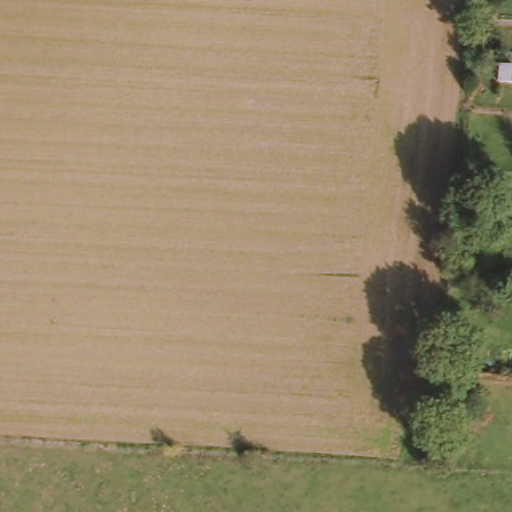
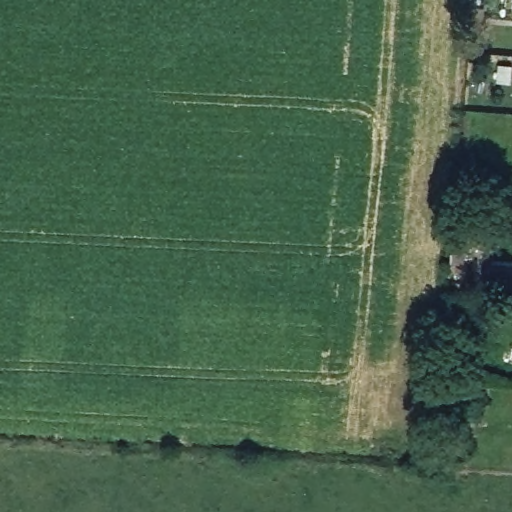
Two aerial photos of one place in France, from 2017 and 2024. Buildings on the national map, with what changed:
unchanged [(479,40),(478,51),(465,50),(465,39),(479,40)]
unchanged [(503,67),(503,82),(489,81),(490,65),(503,67)]

